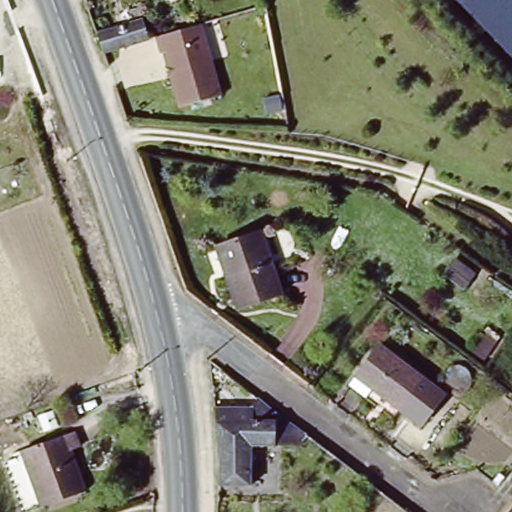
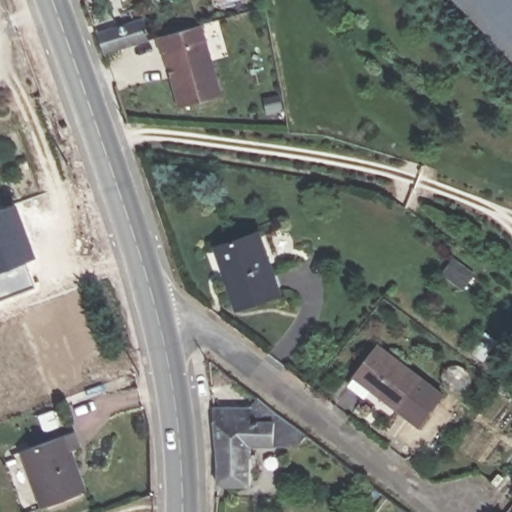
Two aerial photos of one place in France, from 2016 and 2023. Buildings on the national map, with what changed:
demolished [(208,8),(224,3),(226,10),(260,0),(271,0),(271,5),(212,22),(208,8)]
unchanged [(455,0),(512,0),(512,58),(455,0)]
unchanged [(149,16),(157,38),(110,52),(103,34),(103,32),(149,16)]
unchanged [(208,23),(231,93),(189,105),(171,51),(168,52),(163,36),(208,23)]
new [(34,257),(24,260),(33,286),(0,299),(0,209),(14,204),(34,257)]
unchanged [(266,238),(286,299),(239,314),(220,253),(266,238)]
unchanged [(354,379),(361,370),(384,341),(429,376),(406,405),(376,382),(369,392),(354,379)]
unchanged [(301,448),(299,446),(254,444),(251,482),(218,481),(218,477),(218,453),(218,429),(215,404),(255,406),(255,410),(266,410),(266,415),(276,416),(277,412),(316,441),(310,449),(301,448)]
unchanged [(44,508),(23,454),(73,432),(80,448),(71,452),(87,491),(44,508)]

